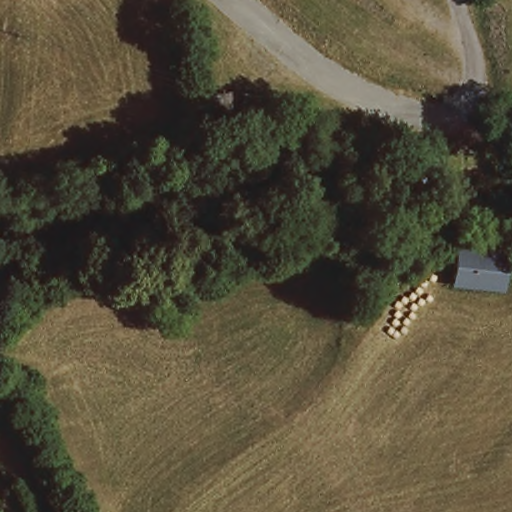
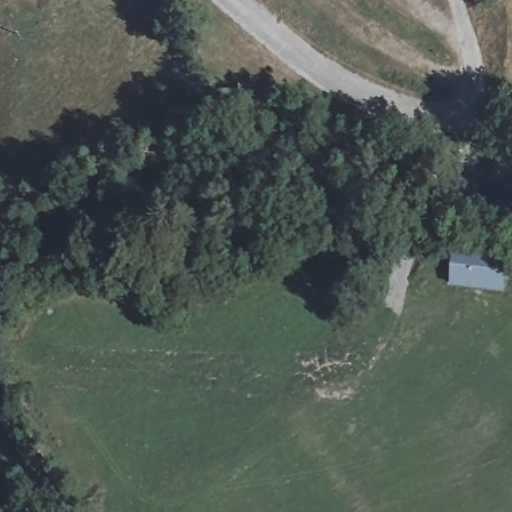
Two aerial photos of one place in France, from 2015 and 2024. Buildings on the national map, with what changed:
unchanged [(202,109),(200,92),(225,87),(228,104),(202,109)]
unchanged [(512,254),(512,271),(508,294),(451,288),(457,248),(512,254)]

